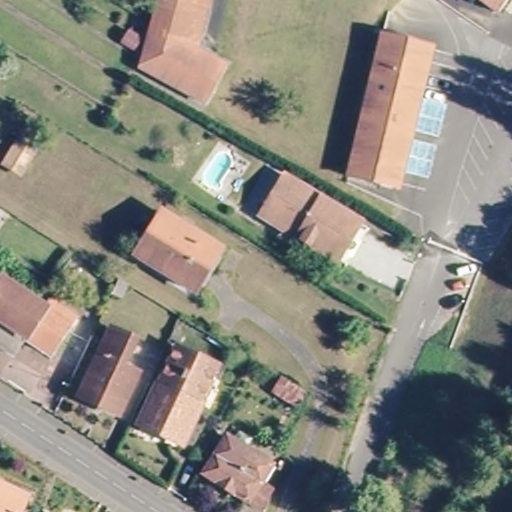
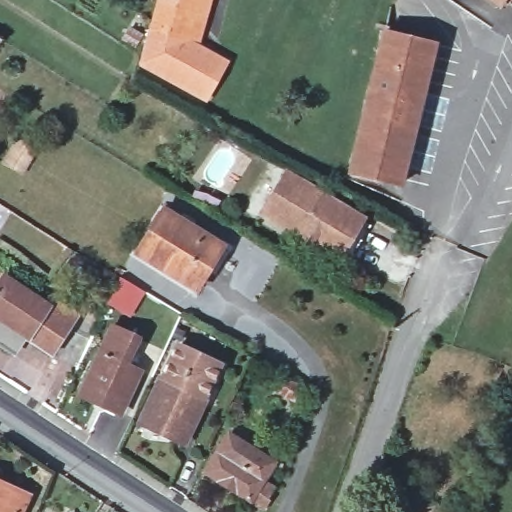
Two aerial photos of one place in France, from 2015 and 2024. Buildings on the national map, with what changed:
unchanged [(205,98),(141,63),(142,55),(151,20),(156,0),(214,0),(204,38),(200,45),(226,59),(205,98)]
unchanged [(490,0),(510,0),(509,2),(503,10),(490,0)]
unchanged [(130,23),(144,33),(136,45),(122,37),(130,23)]
unchanged [(384,32),(436,43),(421,106),(416,104),(411,122),(418,124),(403,185),(351,174),(384,32)]
unchanged [(4,64),(0,61),(0,36),(16,47),(4,64)]
unchanged [(10,141),(27,152),(14,173),(0,165),(0,159),(10,141)]
unchanged [(346,261),(336,255),(260,211),(283,171),(359,215),(369,222),(346,261)]
unchanged [(165,214),(224,249),(198,293),(139,258),(165,214)]
unchanged [(129,280),(121,295),(112,290),(119,274),(129,280)]
unchanged [(45,307),(50,300),(76,319),(51,352),(0,318),(0,275),(45,307)]
unchanged [(110,324),(133,335),(121,361),(138,370),(119,410),(78,392),(110,324)]
unchanged [(182,349),(220,367),(185,444),(145,428),(182,349)]
unchanged [(282,375),(303,389),(295,402),(274,388),(282,375)]
unchanged [(226,438),(271,466),(260,483),(273,491),(266,501),(270,503),(263,512),(203,476),(226,438)]
unchanged [(381,465),(392,471),(385,493),(373,488),(381,465)]
unchanged [(27,499),(21,512),(0,512),(0,486),(27,499)]

